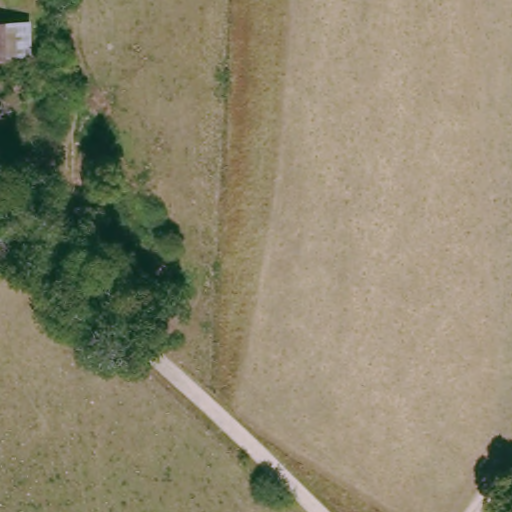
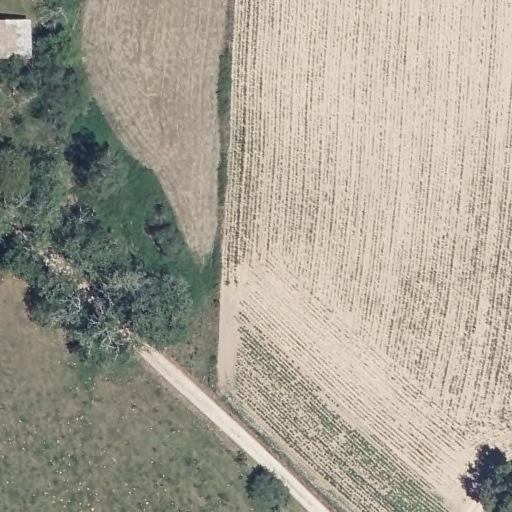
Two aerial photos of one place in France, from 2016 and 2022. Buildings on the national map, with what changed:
unchanged [(27,55),(0,56),(0,57),(0,19),(27,19),(27,55)]

